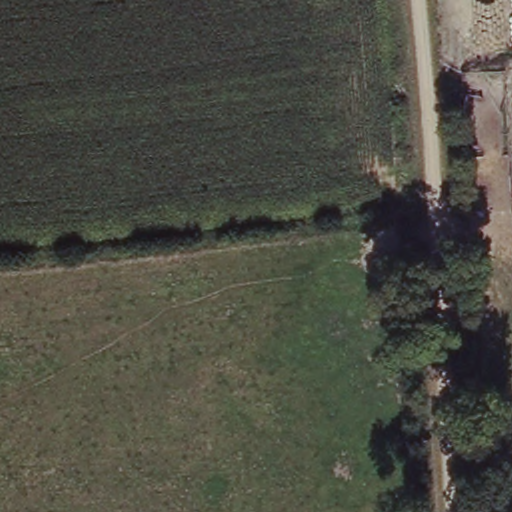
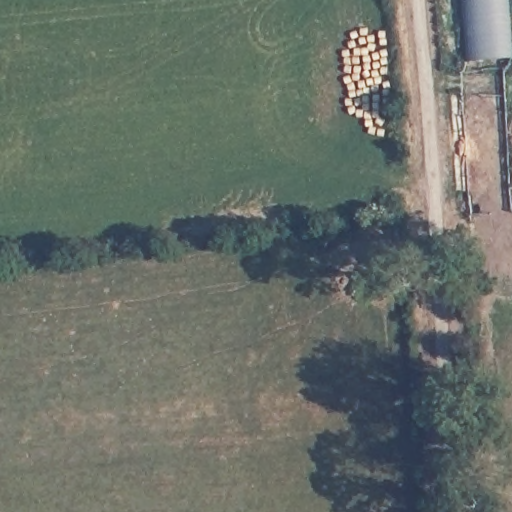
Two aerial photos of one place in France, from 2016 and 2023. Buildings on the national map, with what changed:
new [(466,60),(459,0),(512,0),(512,57),(466,60)]

